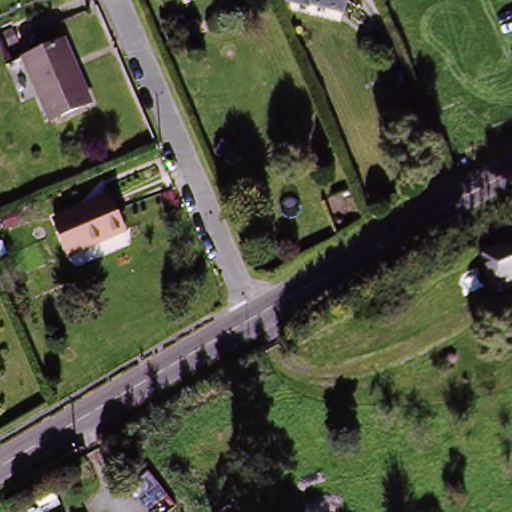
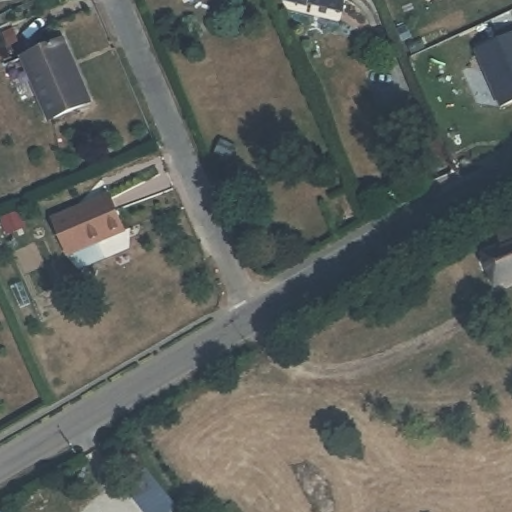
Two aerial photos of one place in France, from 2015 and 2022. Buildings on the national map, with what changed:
unchanged [(289,0),(302,0),(299,5),(289,0)]
unchanged [(304,0),(343,0),(336,16),(304,0)]
new [(512,35),(512,104),(505,107),(478,50),(512,35)]
unchanged [(62,40),(88,101),(50,119),(23,57),(62,40)]
unchanged [(109,195),(125,235),(90,249),(92,256),(70,265),(50,220),(109,195)]
unchanged [(493,264),(508,258),(503,241),(512,238),(512,280),(500,284),(493,264)]

